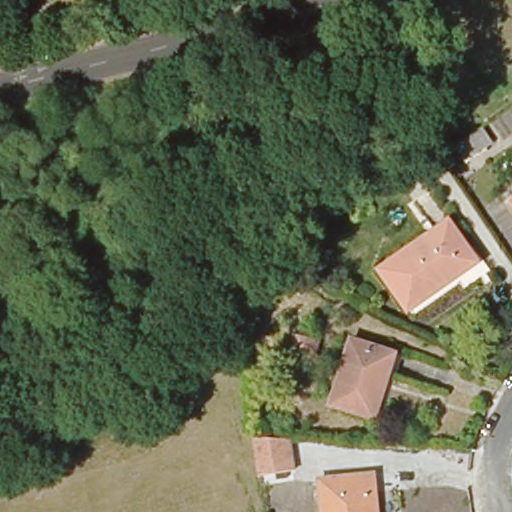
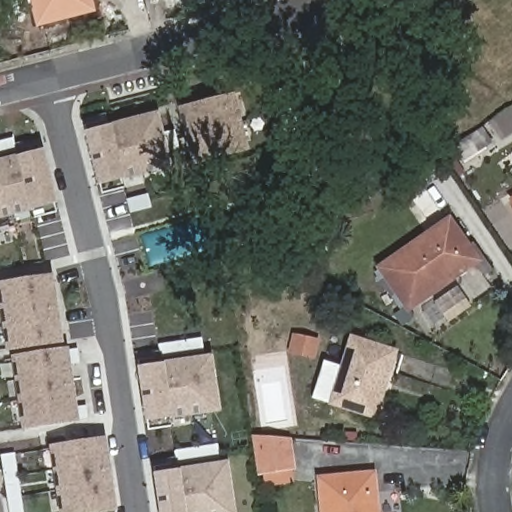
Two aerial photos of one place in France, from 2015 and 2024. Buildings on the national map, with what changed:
new [(36,28),(29,0),(93,0),(96,12),(36,28)]
new [(323,57),(326,68),(308,73),(305,62),(323,57)]
new [(299,131),(285,135),(275,93),(288,90),(299,131)]
new [(233,99),(246,152),(196,165),(182,112),(233,99)]
new [(161,136),(175,132),(179,150),(165,153),(169,168),(100,186),(87,135),(156,117),(161,136)]
new [(110,129),(87,135),(85,127),(108,121),(110,129)]
unchanged [(481,129),(494,147),(466,168),(452,149),(481,129)]
new [(0,158),(0,143),(14,140),(17,151),(40,145),(42,153),(55,204),(0,218),(0,165),(19,160),(17,153),(0,158)]
new [(127,201),(148,196),(152,209),(130,215),(127,201)]
unchanged [(512,196),(512,201),(510,197),(512,196)]
new [(319,235),(293,247),(282,224),(308,211),(319,235)]
unchanged [(379,267),(450,219),(474,252),(479,259),(470,265),(406,307),(379,267)]
new [(322,241),(311,246),(308,240),(319,235),(322,241)]
new [(0,286),(51,279),(60,343),(9,351),(6,329),(0,290),(0,286)]
unchanged [(320,338),(315,358),(286,351),(291,332),(320,338)]
unchanged [(346,337),(391,349),(374,415),(328,402),(346,337)]
new [(202,340),(204,353),(160,359),(158,347),(202,340)]
new [(14,360),(66,352),(77,351),(79,365),(68,366),(76,422),(25,429),(14,360)]
new [(147,422),(139,370),(138,362),(160,360),(161,367),(210,360),(217,411),(147,422)]
new [(86,408),(88,420),(76,422),(74,409),(86,408)]
new [(171,428),(148,432),(147,422),(169,419),(171,428)]
unchanged [(287,472),(257,476),(252,437),(251,435),(254,435),(283,437),(287,472)]
new [(111,512),(61,512),(52,449),(104,442),(114,511),(111,512)]
new [(23,512),(9,512),(1,457),(14,455),(23,512)]
new [(155,476),(154,468),(177,465),(178,473),(155,476)]
new [(160,512),(155,476),(226,466),(233,512),(160,512)]
unchanged [(375,476),(379,512),(324,512),(321,480),(375,476)]

